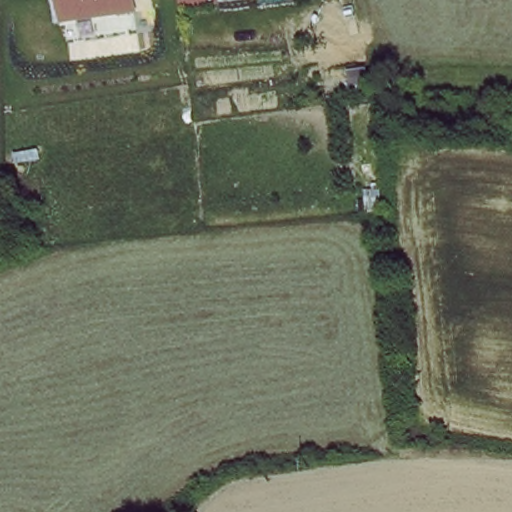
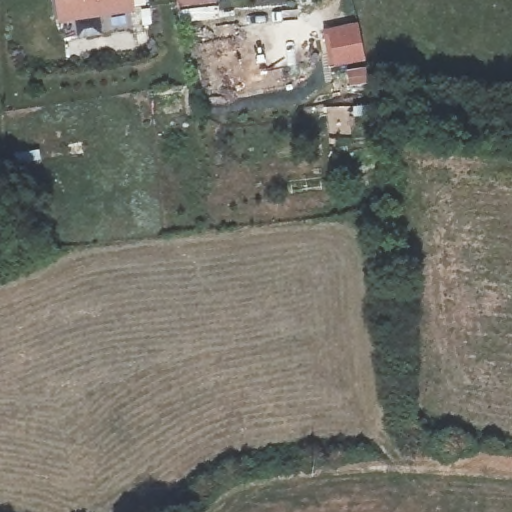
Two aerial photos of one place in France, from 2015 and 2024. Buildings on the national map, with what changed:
unchanged [(136,2),(64,12),(62,0),(136,0),(136,2)]
unchanged [(181,7),(180,0),(213,0),(213,2),(181,7)]
new [(357,26),(364,57),(330,64),(323,33),(357,26)]

